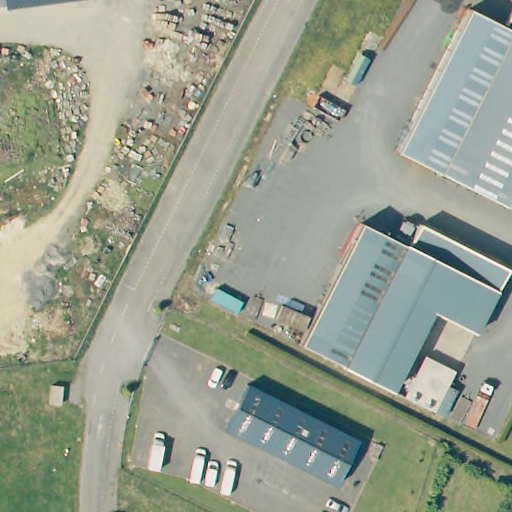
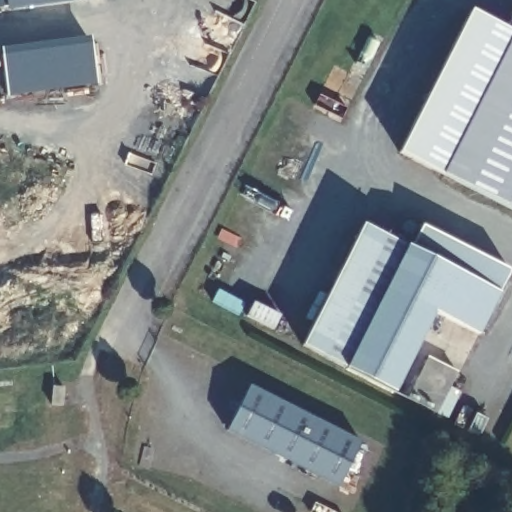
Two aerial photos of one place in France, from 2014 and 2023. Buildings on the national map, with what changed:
unchanged [(47,5),(9,10),(9,6),(0,8),(0,0),(87,0),(47,5)]
unchanged [(512,31),(512,210),(399,152),(471,10),(512,31)]
unchanged [(512,18),(512,26),(509,24),(512,18)]
new [(6,97),(0,47),(89,34),(96,85),(6,97)]
unchanged [(480,328),(436,306),(395,386),(349,362),(349,361),(304,339),(366,217),(413,241),(424,219),(512,264),(512,265),(480,328)]
unchanged [(434,412),(404,397),(425,356),(455,371),(434,412)]
unchanged [(359,443),(337,488),(225,431),(248,387),(359,443)]
unchanged [(64,390),(61,408),(50,407),(52,388),(64,390)]

